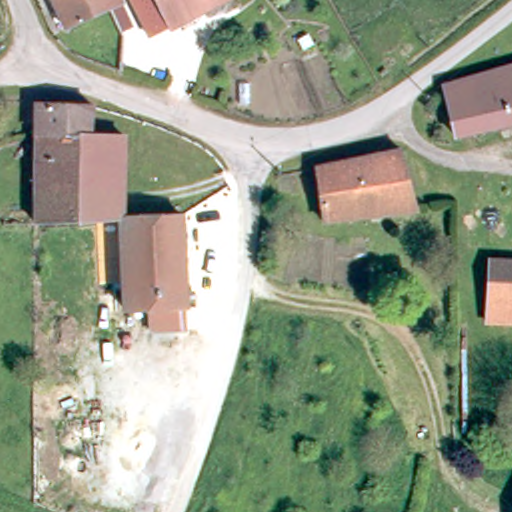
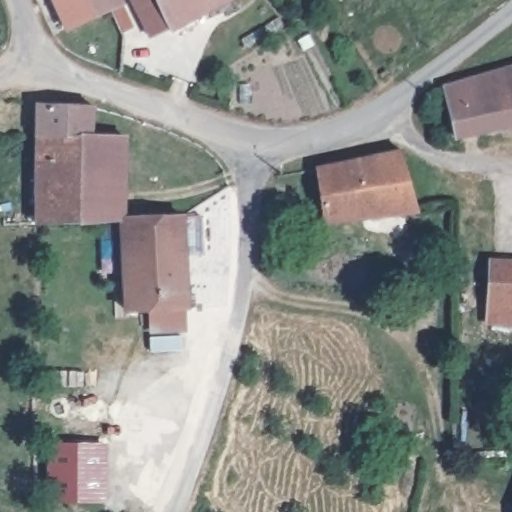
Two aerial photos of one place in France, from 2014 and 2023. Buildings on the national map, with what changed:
unchanged [(51,0),(115,0),(118,5),(107,10),(65,29),(51,0)]
unchanged [(121,0),(151,0),(164,26),(141,39),(121,0)]
unchanged [(164,26),(151,0),(227,0),(167,32),(164,26)]
unchanged [(461,138),(447,87),(512,69),(512,126),(461,138)]
unchanged [(36,138),(37,112),(94,114),(95,143),(80,144),(36,145),(36,138)]
unchanged [(80,227),(80,144),(95,143),(125,144),(125,225),(80,227)]
unchanged [(36,145),(80,144),(80,227),(38,228),(36,145)]
unchanged [(318,168),(347,161),(402,154),(422,211),(327,220),(318,168)]
unchanged [(184,222),(188,310),(130,313),(125,225),(184,222)]
unchanged [(512,259),(512,327),(485,325),(487,259),(512,259)]
new [(49,501),(50,443),(107,443),(107,501),(49,501)]

